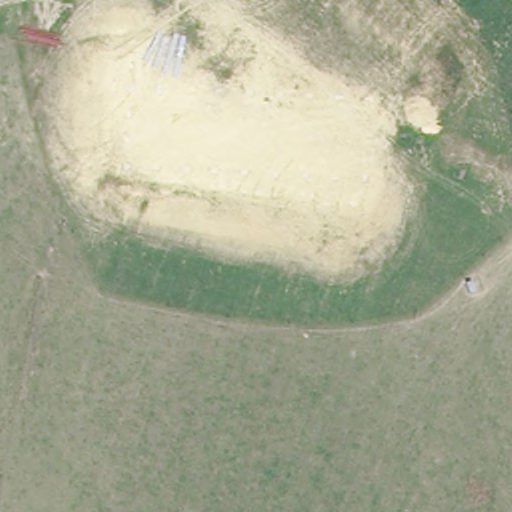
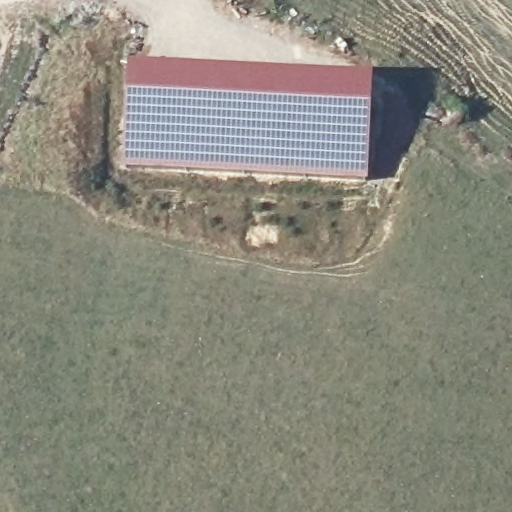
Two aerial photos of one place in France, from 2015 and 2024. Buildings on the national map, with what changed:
new [(373,80),(366,183),(123,167),(128,64),(373,80)]

